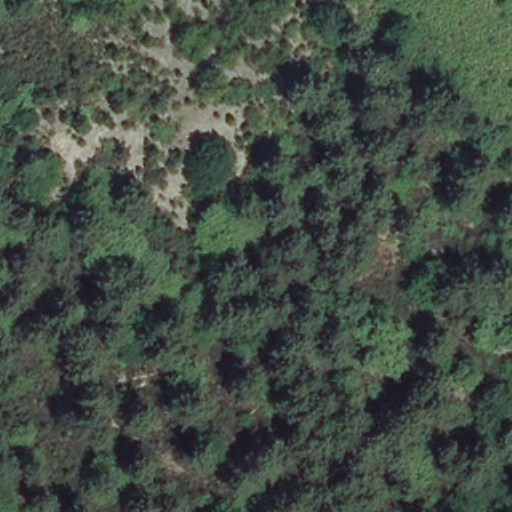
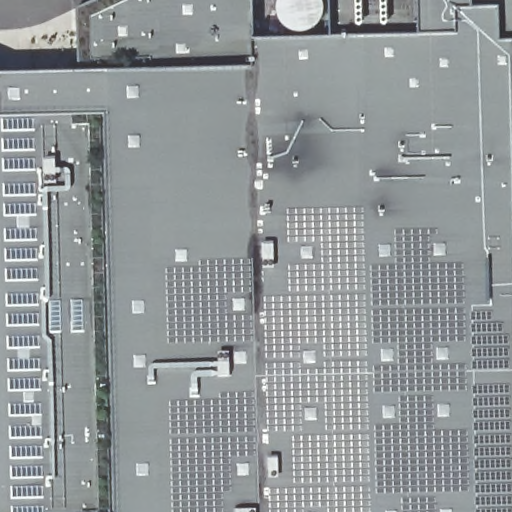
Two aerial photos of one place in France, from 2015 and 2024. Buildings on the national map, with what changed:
new [(80,68),(78,6),(92,0),(256,0),(256,2),(280,20),(335,19),(337,0),(512,0),(512,512),(0,512),(0,69),(2,70),(80,68)]

